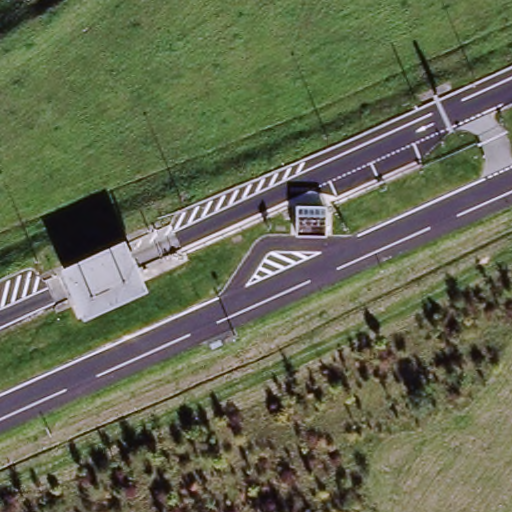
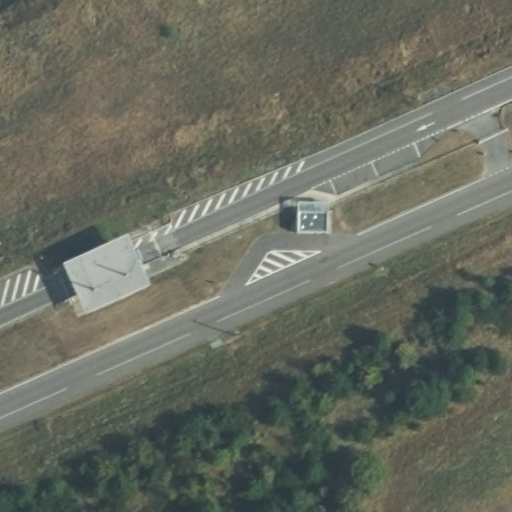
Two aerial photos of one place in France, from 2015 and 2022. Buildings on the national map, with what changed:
unchanged [(148,290),(80,320),(57,267),(126,238),(148,290)]

